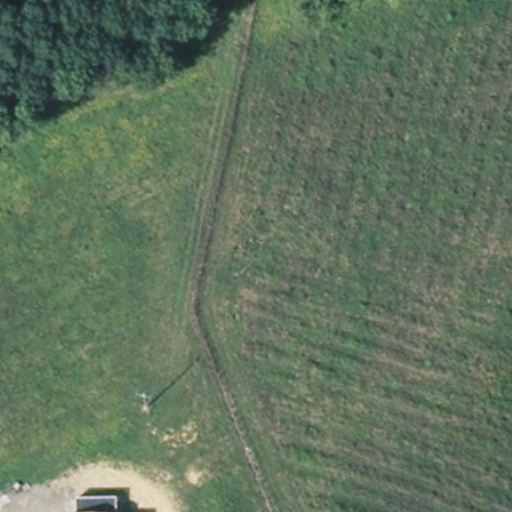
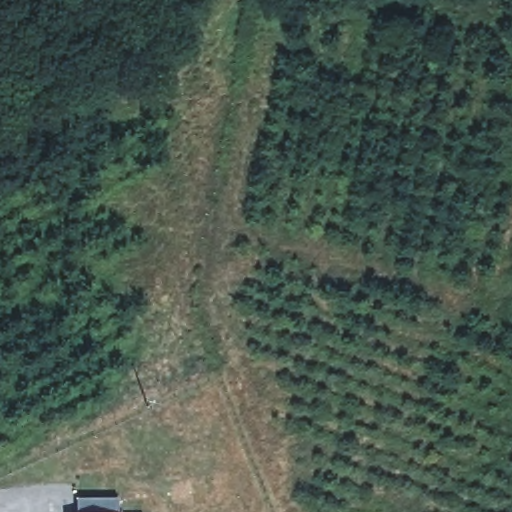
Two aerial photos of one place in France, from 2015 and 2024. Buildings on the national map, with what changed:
unchanged [(117,512),(78,512),(78,501),(117,502),(117,512)]

